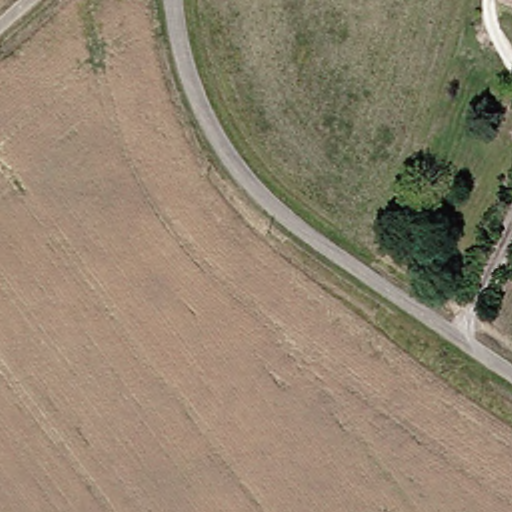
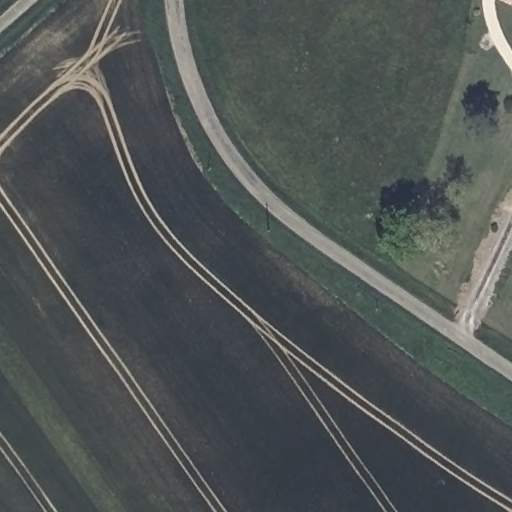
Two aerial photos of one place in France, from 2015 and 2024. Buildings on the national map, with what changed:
unchanged [(512,0),(512,6),(506,4),(507,0),(512,0)]

